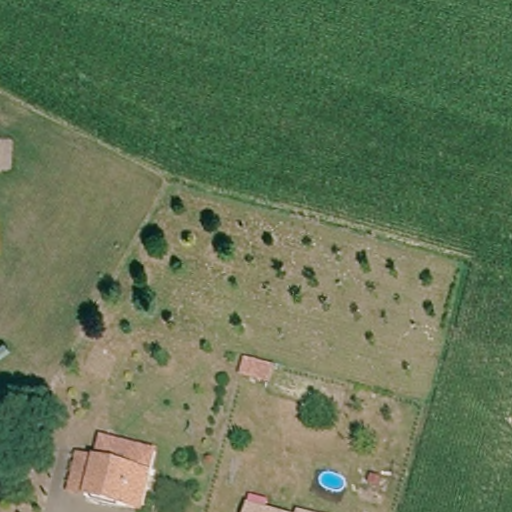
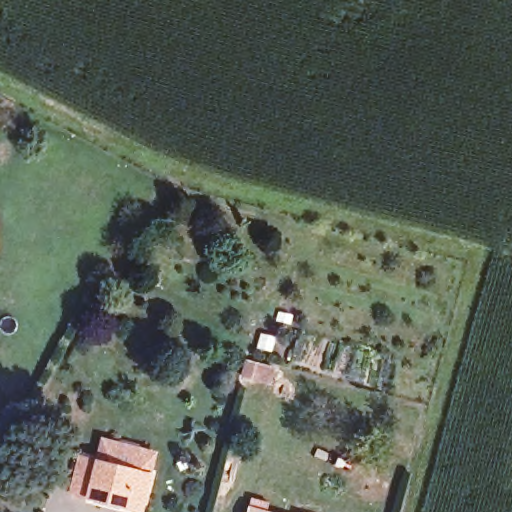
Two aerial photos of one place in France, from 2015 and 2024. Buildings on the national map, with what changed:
unchanged [(130,507),(76,493),(86,457),(156,475),(152,493),(147,511),(130,507)]

